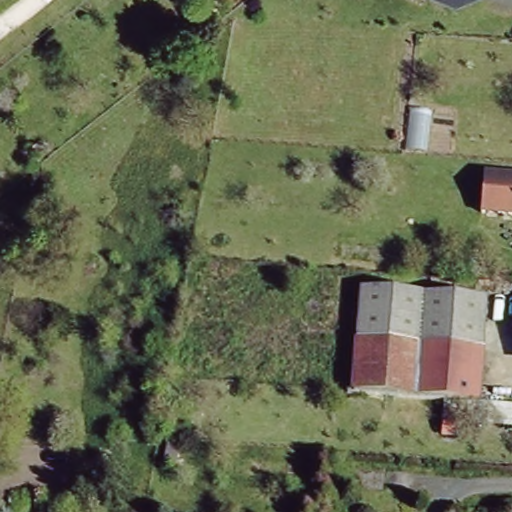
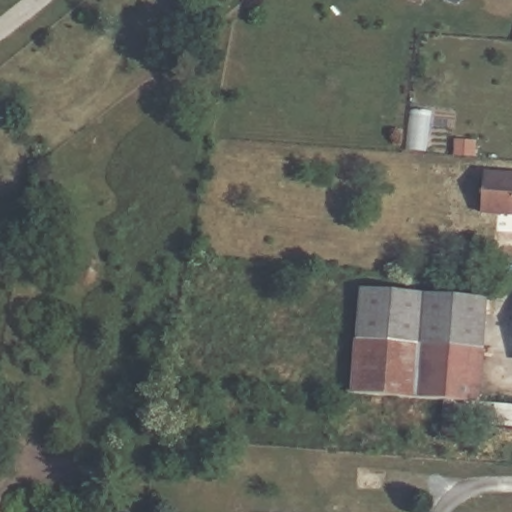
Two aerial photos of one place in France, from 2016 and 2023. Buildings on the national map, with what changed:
unchanged [(454,5),(442,0),(463,0),(460,1),(454,5)]
unchanged [(476,213),(478,173),(512,175),(512,215),(476,213)]
unchanged [(350,391),(360,287),(482,296),(472,400),(350,391)]
unchanged [(180,445),(178,461),(167,460),(168,443),(180,445)]

